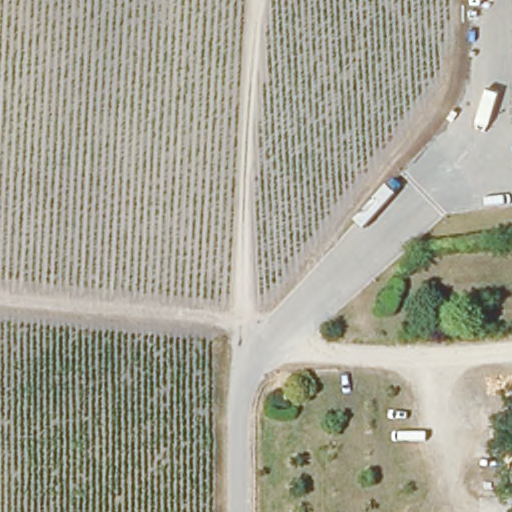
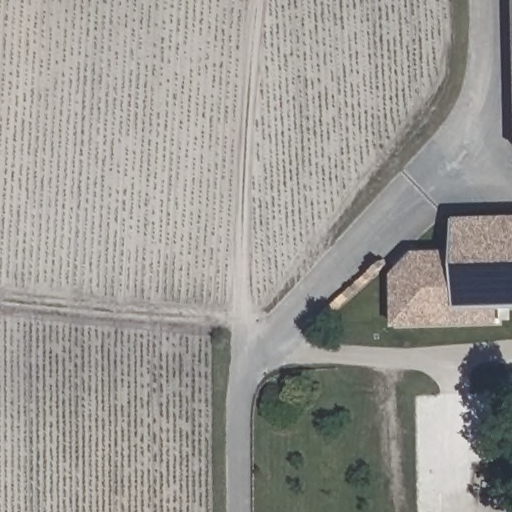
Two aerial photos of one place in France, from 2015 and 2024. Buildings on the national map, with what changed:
new [(496,324),(395,327),(394,274),(416,253),(459,252),(458,219),(512,218),(512,307),(495,308),(496,324)]

